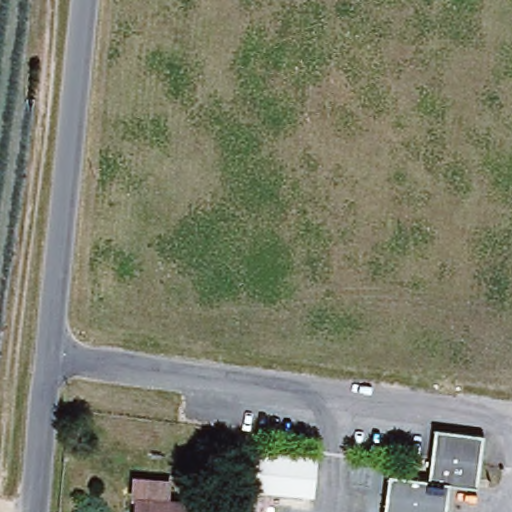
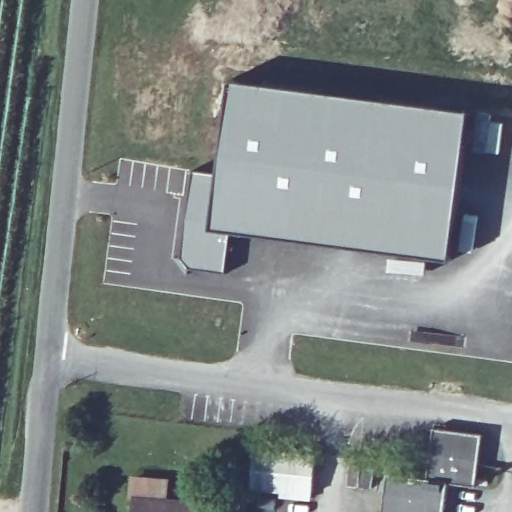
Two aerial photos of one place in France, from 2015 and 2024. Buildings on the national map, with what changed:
new [(232,229),(225,272),(190,269),(181,257),(192,171),(219,171),(230,80),(470,111),(450,258),(232,229)]
unchanged [(427,480),(432,430),(482,435),(474,487),(448,483),(444,512),(381,512),(385,476),(427,480)]
new [(257,444),(318,452),(312,500),(283,497),(251,490),(257,444)]
new [(350,457),(376,463),(371,488),(345,485),(350,457)]
unchanged [(167,495),(208,505),(208,512),(133,512),(134,506),(129,502),(133,475),(168,481),(167,495)]

